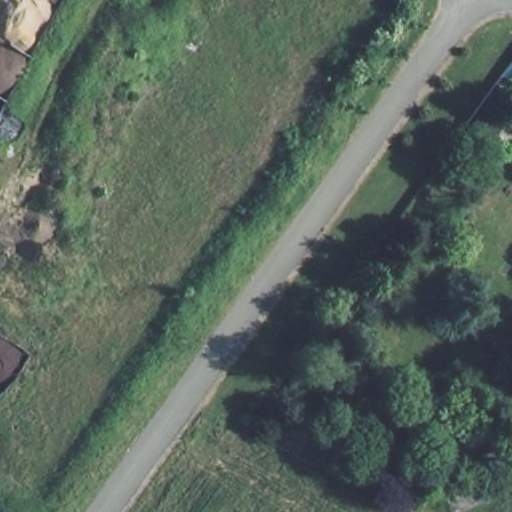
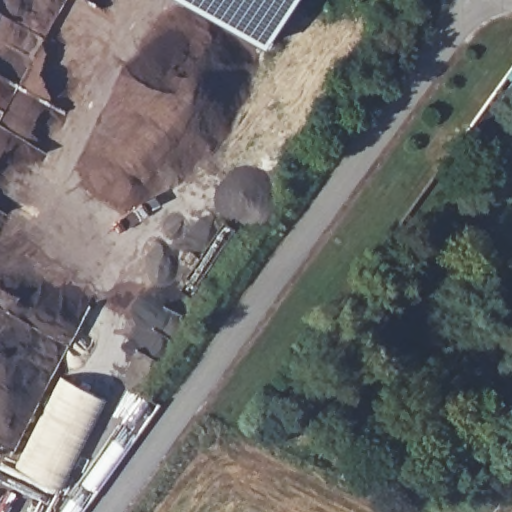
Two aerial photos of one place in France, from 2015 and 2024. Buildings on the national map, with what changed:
new [(176,0),(287,0),(260,47),(176,0)]
new [(62,378),(105,400),(61,488),(16,467),(62,378)]

